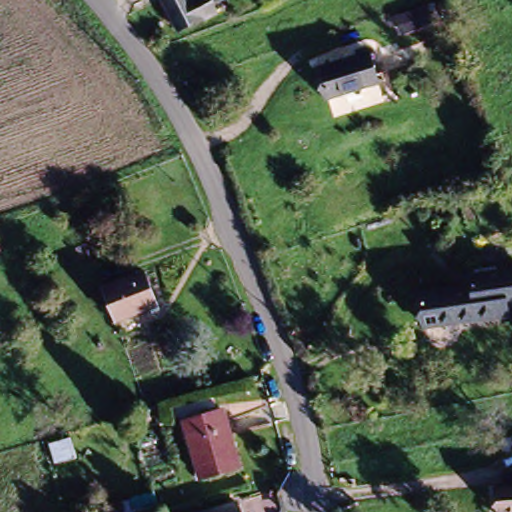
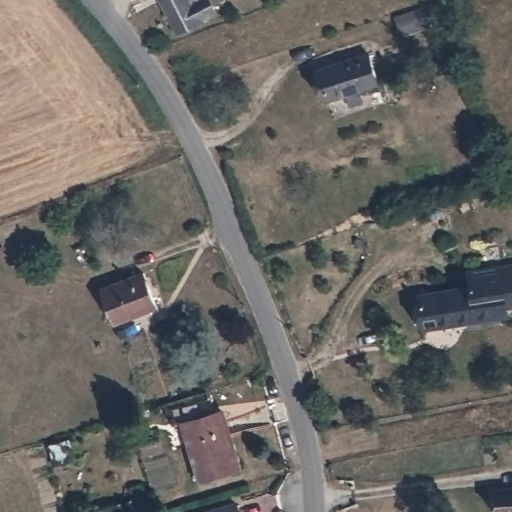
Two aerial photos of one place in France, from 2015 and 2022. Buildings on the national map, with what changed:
unchanged [(213,20),(178,35),(163,0),(164,0),(203,0),(204,1),(213,20)]
unchanged [(378,80),(330,102),(317,72),(363,49),(378,80)]
unchanged [(3,256),(0,257),(0,246),(3,256)]
unchanged [(431,331),(423,301),(475,288),(470,272),(500,265),(512,261),(512,301),(510,301),(512,311),(482,318),(431,331)]
unchanged [(161,306),(117,323),(107,294),(148,277),(161,306)]
unchanged [(243,470),(201,485),(178,426),(218,411),(243,470)]
unchanged [(55,474),(46,447),(70,438),(79,465),(55,474)]
unchanged [(512,512),(504,512),(501,496),(512,495),(512,512)]
unchanged [(237,512),(204,512),(233,502),(237,512)]

